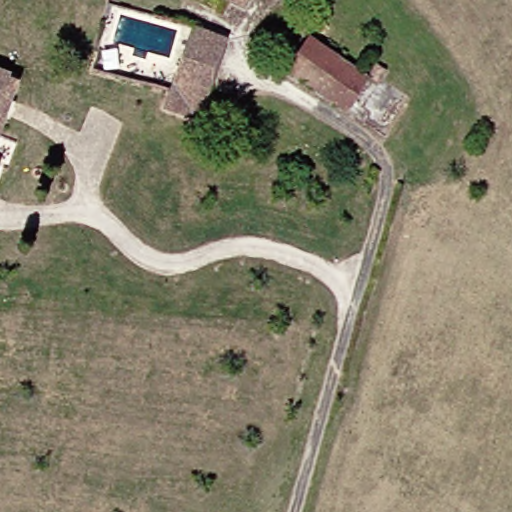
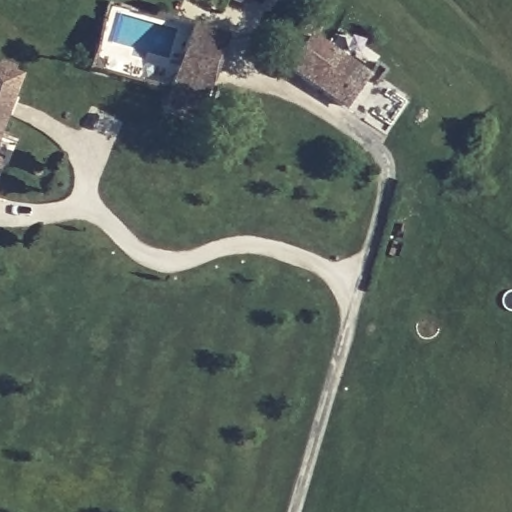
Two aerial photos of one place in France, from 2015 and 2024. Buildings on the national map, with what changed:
unchanged [(242,0),(235,12),(215,0),(242,0)]
unchanged [(187,17),(222,28),(211,67),(177,58),(187,17)]
unchanged [(406,107),(382,141),(285,75),(307,39),(375,84),(406,107)]
unchanged [(211,67),(199,111),(164,101),(177,58),(211,67)]
unchanged [(16,75),(0,119),(0,70),(16,75)]

